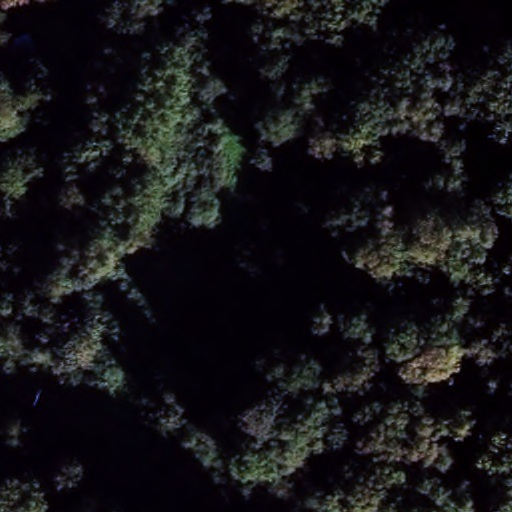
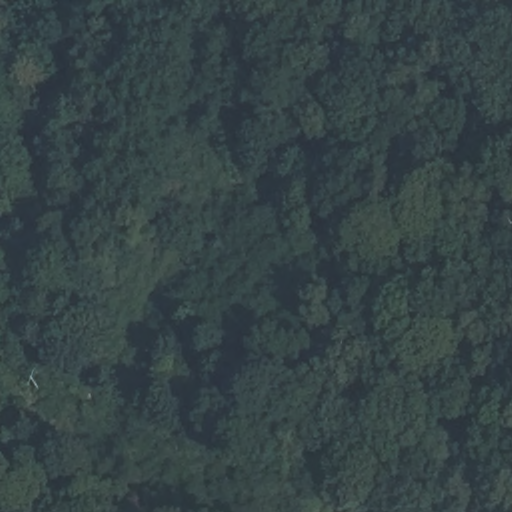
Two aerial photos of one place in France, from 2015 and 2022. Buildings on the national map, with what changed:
unchanged [(0,60),(0,23),(8,20),(19,54),(0,60)]

